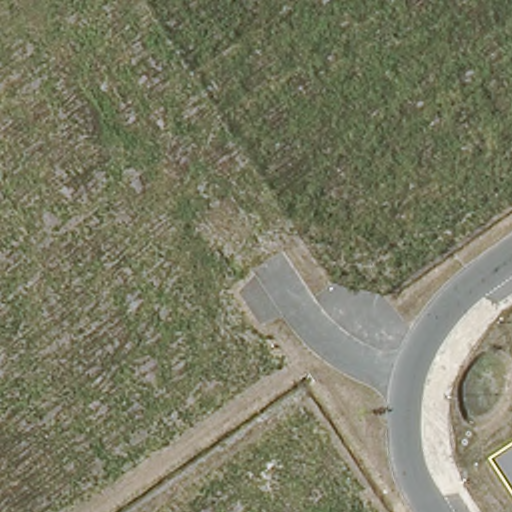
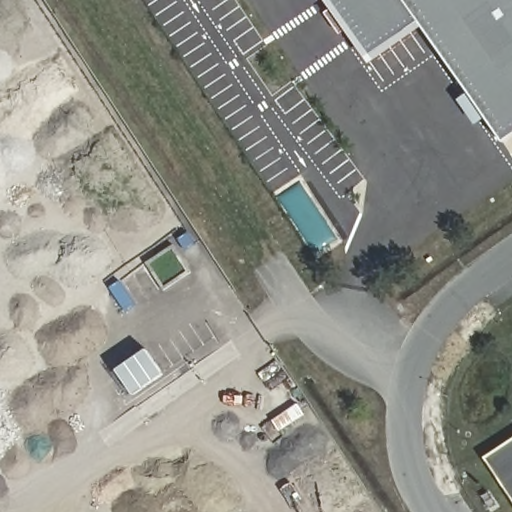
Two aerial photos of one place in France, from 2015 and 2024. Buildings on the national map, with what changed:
new [(422,21),(374,57),(332,0),(512,0),(512,136),(505,140),(422,21)]
unchanged [(512,440),(512,498),(486,457),(512,440)]

